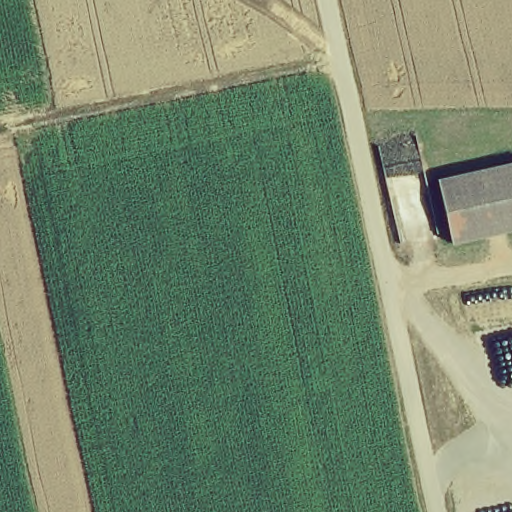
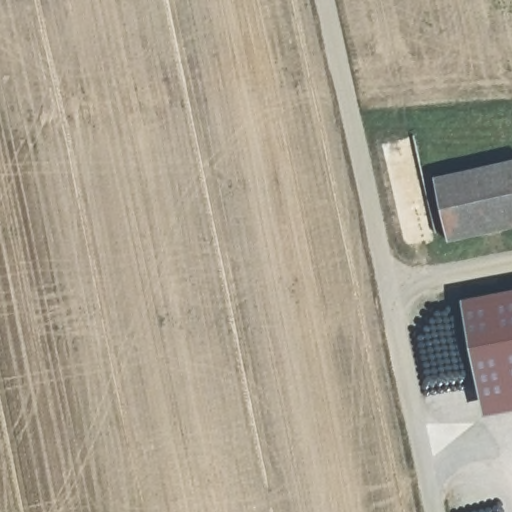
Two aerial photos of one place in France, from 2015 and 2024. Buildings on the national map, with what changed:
unchanged [(448,244),(435,180),(512,164),(512,230),(448,244)]
new [(512,292),(512,411),(487,416),(464,301),(512,292)]

